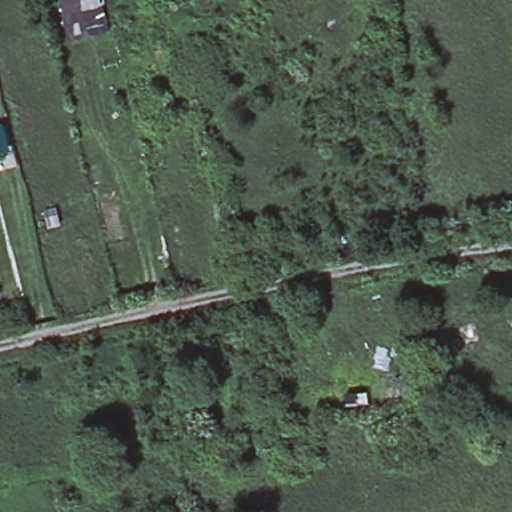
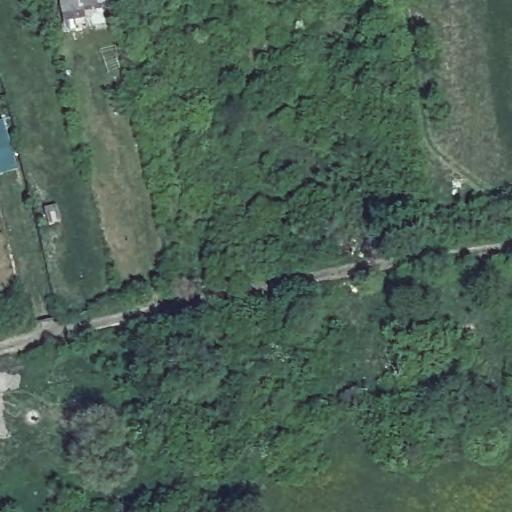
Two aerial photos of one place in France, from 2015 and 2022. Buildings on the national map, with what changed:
unchanged [(70,41),(62,0),(103,0),(108,26),(94,30),(95,36),(70,41)]
unchanged [(1,153),(0,149),(0,131),(7,129),(13,150),(1,153)]
unchanged [(49,225),(45,209),(57,206),(61,222),(49,225)]

